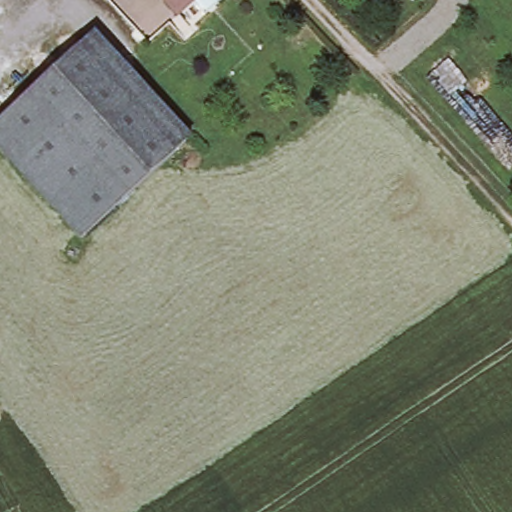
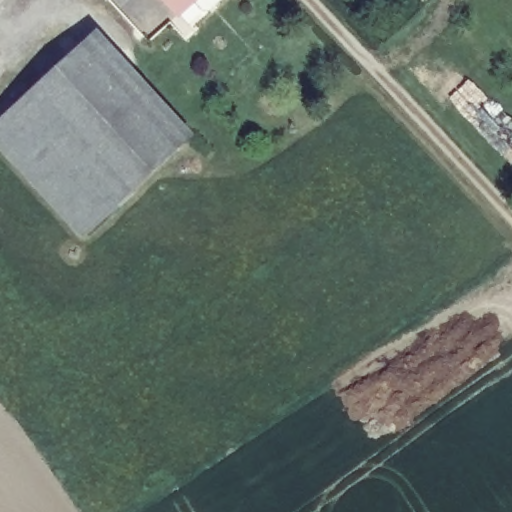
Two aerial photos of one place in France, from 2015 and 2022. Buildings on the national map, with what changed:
unchanged [(185,23),(165,0),(210,0),(185,23)]
unchanged [(89,234),(0,136),(0,121),(87,42),(185,147),(89,234)]

